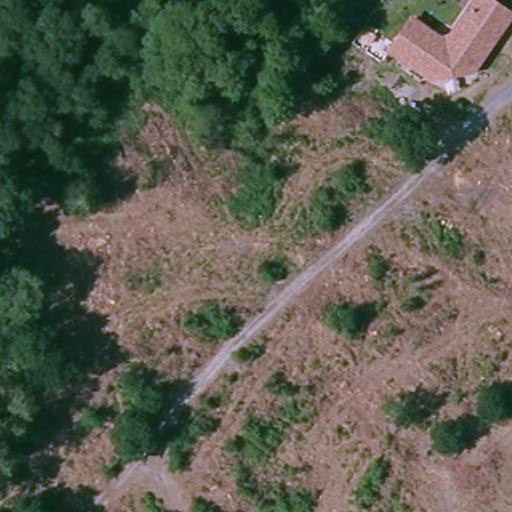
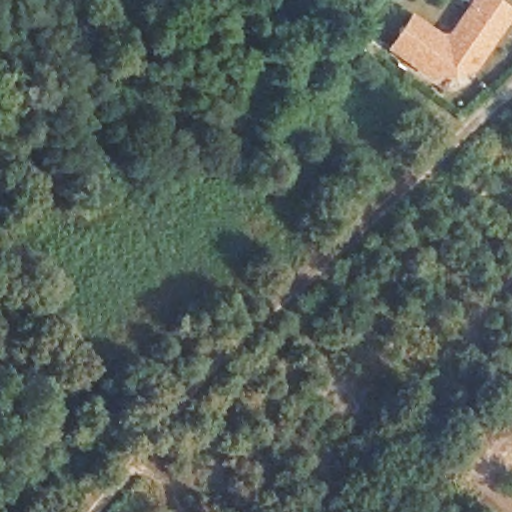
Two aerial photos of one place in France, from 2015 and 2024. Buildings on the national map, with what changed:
unchanged [(412,20),(441,39),(451,37),(476,0),(492,0),(512,14),(474,70),(433,79),(391,51),(412,20)]

